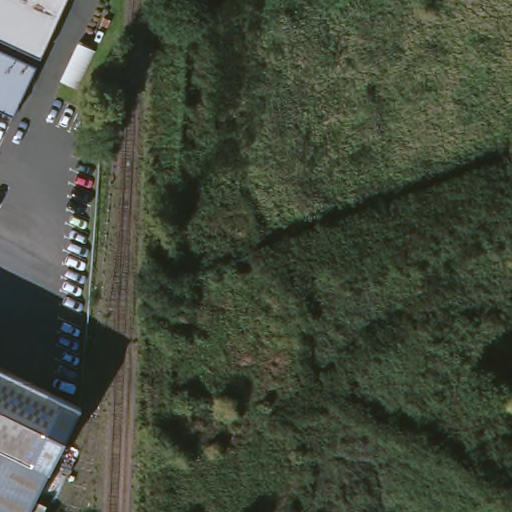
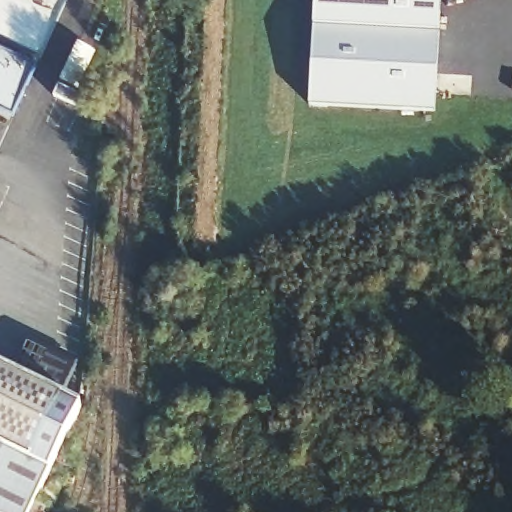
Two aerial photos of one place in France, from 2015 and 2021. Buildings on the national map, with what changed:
unchanged [(0,41),(0,0),(67,0),(40,59),(0,41)]
new [(439,0),(432,112),(307,105),(313,0),(439,0)]
unchanged [(13,119),(0,112),(0,51),(36,67),(13,119)]
unchanged [(0,363),(85,405),(31,512),(0,512),(0,363)]

